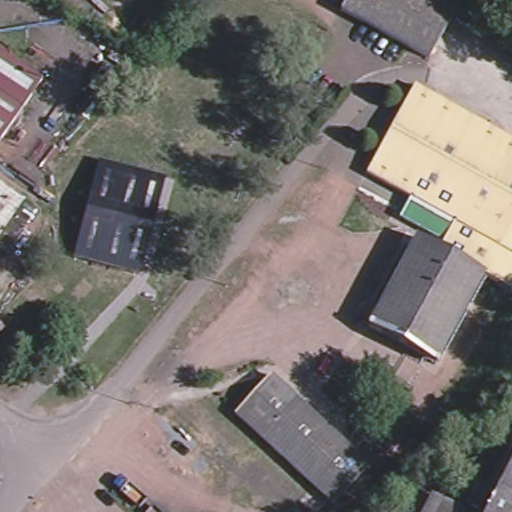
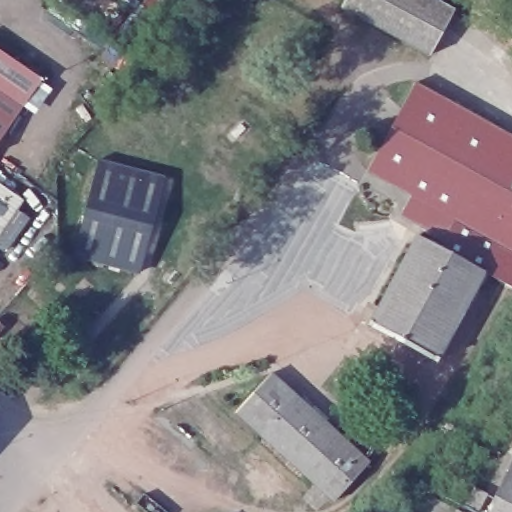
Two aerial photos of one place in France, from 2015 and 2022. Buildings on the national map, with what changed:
unchanged [(345,0),(431,0),(454,14),(429,57),(342,6),(345,0)]
unchanged [(0,138),(0,46),(43,76),(0,138)]
unchanged [(487,245),(438,216),(362,170),(417,78),(512,136),(512,203),(487,245)]
unchanged [(14,209),(29,219),(6,252),(0,247),(0,181),(23,197),(14,209)]
unchanged [(474,279),(429,252),(437,240),(431,236),(437,226),(433,224),(438,216),(487,245),(512,203),(512,279),(506,290),(502,296),(497,293),(474,279)]
unchanged [(357,320),(407,239),(429,252),(474,279),(424,361),(357,320)]
unchanged [(375,446),(351,489),(238,425),(263,383),(375,446)]
unchanged [(512,461),(512,512),(486,512),(488,510),(512,461)]
unchanged [(466,501),(473,486),(487,493),(480,507),(477,512),(476,512),(463,505),(466,501)]
unchanged [(426,512),(434,496),(462,509),(461,512),(426,512)]

